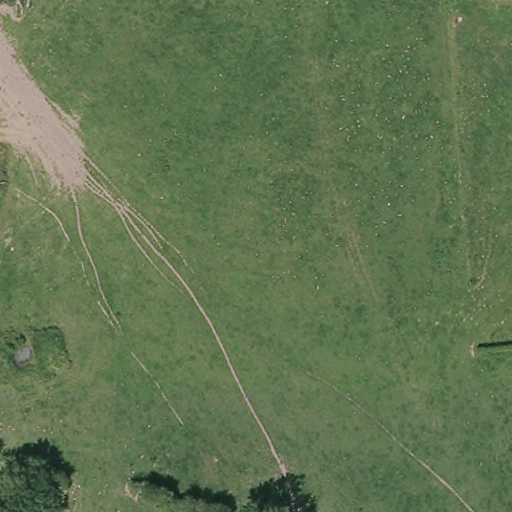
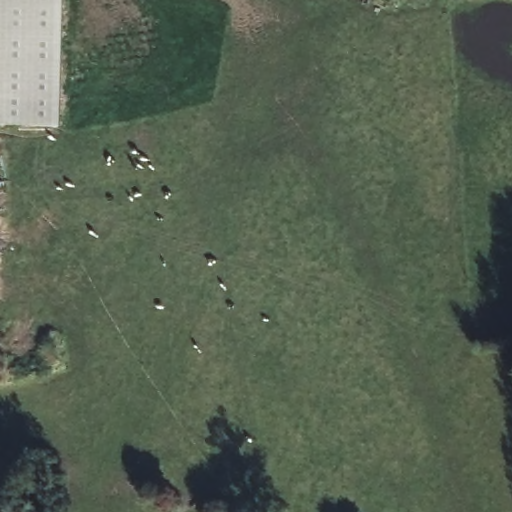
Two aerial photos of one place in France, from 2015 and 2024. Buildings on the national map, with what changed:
new [(0,127),(0,0),(63,0),(61,128),(0,127)]

